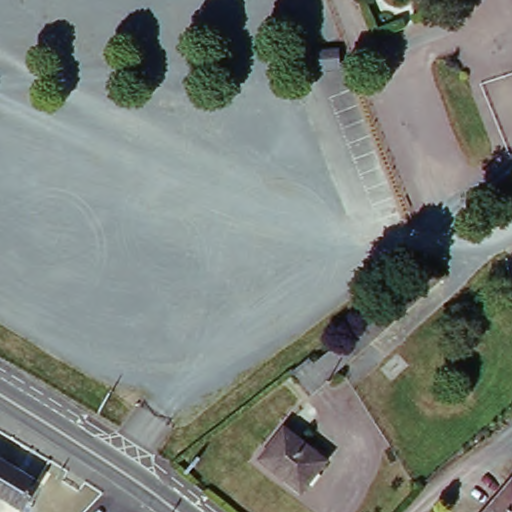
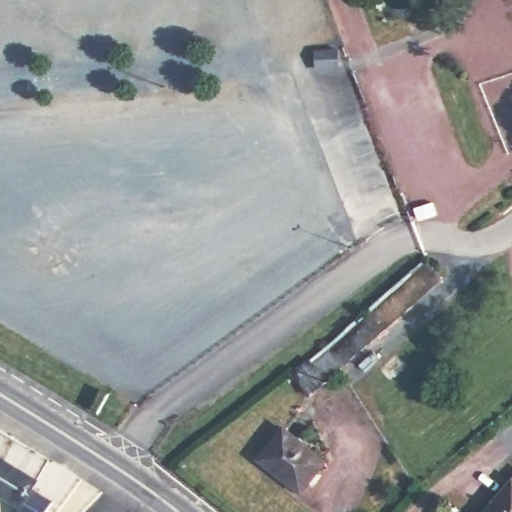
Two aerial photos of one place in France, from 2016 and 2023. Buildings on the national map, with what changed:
unchanged [(332,55),(333,72),(312,72),(311,56),(332,55)]
unchanged [(317,363),(329,352),(432,265),(446,282),(345,371),(332,381),(315,397),(294,372),(312,358),(317,363)]
unchanged [(283,426),(326,457),(302,488),(260,456),(283,426)]
unchanged [(38,481),(19,511),(0,499),(0,458),(38,481)]
unchanged [(512,512),(487,512),(512,482),(512,512)]

